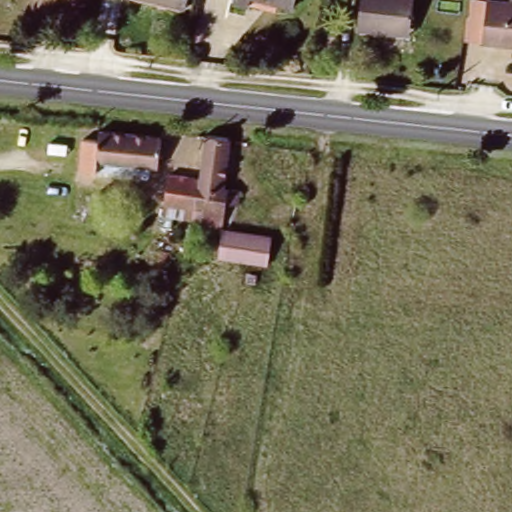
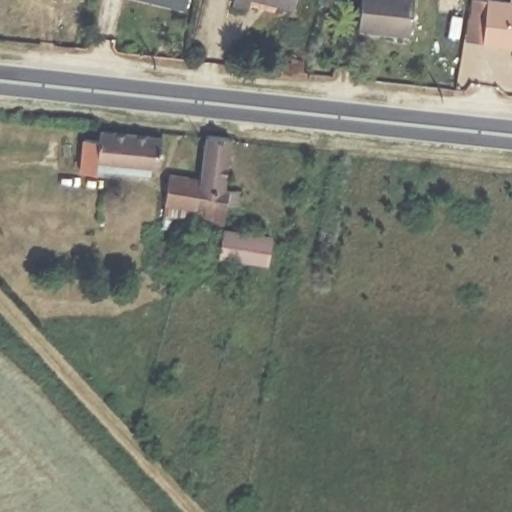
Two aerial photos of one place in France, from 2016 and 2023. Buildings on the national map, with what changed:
unchanged [(250,0),(254,0),(254,1),(250,0)]
unchanged [(358,23),(359,0),(415,0),(413,17),(412,26),(390,25),(358,23)]
unchanged [(512,0),(512,37),(482,33),(486,0),(512,0)]
unchanged [(158,160),(101,154),(105,129),(162,134),(158,160)]
unchanged [(169,171),(198,175),(205,136),(230,139),(224,187),(239,188),(236,209),(222,208),(220,218),(191,216),(193,204),(164,200),(169,171)]
unchanged [(217,250),(222,226),(269,232),(272,232),(267,256),(217,250)]

